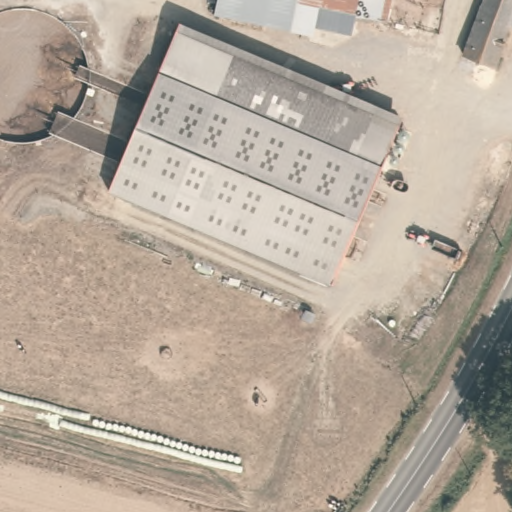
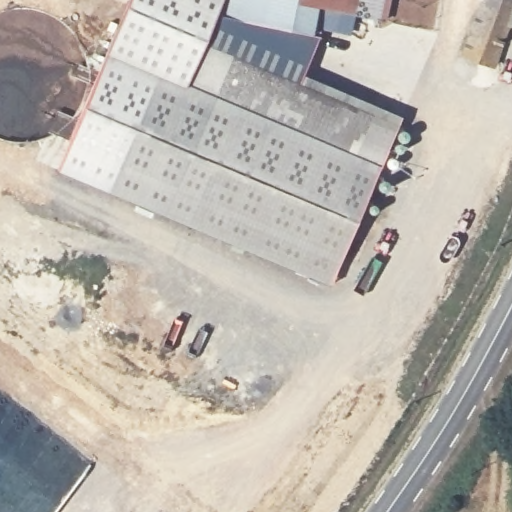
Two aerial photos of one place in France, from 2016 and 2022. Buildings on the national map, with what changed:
new [(57,170),(129,0),(218,0),(215,16),(311,36),(312,27),(321,29),(301,77),(175,23),(110,189),(57,170)]
unchanged [(385,21),(341,12),(336,32),(312,27),(311,36),(215,16),(218,0),(390,0),(385,21)]
unchanged [(495,67),(462,56),(484,0),(512,0),(512,28),(508,27),(495,67)]
unchanged [(110,189),(175,23),(400,119),(383,158),(331,285),(110,189)]

